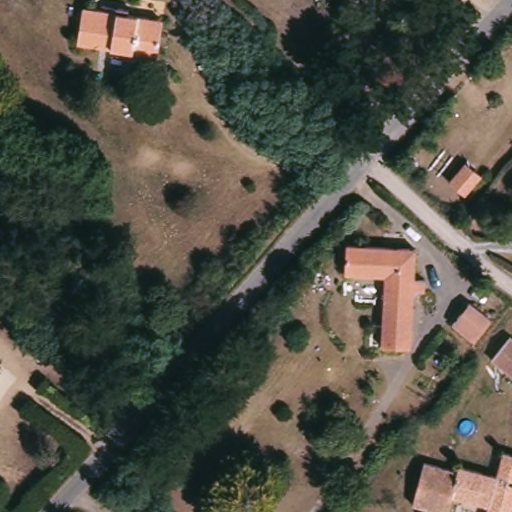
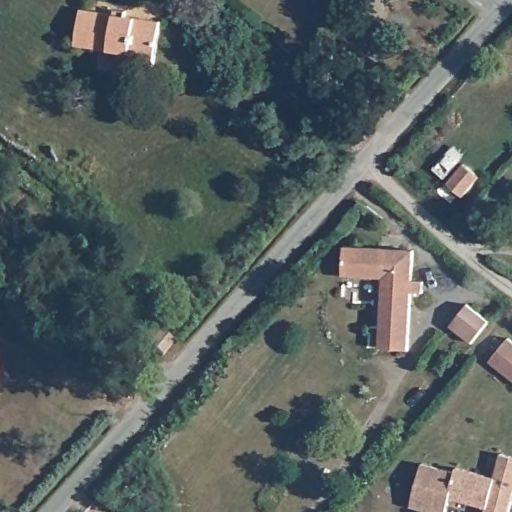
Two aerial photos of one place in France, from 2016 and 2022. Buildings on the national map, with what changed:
unchanged [(162,22),(154,67),(127,63),(130,52),(76,43),(82,8),(162,22)]
unchanged [(465,162),(480,175),(463,194),(448,181),(465,162)]
unchanged [(341,246),(411,249),(410,280),(421,280),(420,292),(409,292),(406,349),(376,348),(377,277),(339,275),(341,246)]
unchanged [(470,302),(492,321),(476,342),(452,324),(470,302)]
unchanged [(161,330),(177,340),(166,355),(150,345),(161,330)]
unchanged [(505,337),(512,342),(512,380),(487,361),(505,337)]
unchanged [(420,465),(455,473),(456,469),(492,477),(497,451),(512,454),(512,493),(508,512),(483,512),(485,507),(448,498),(445,512),(425,512),(410,508),(420,465)]

